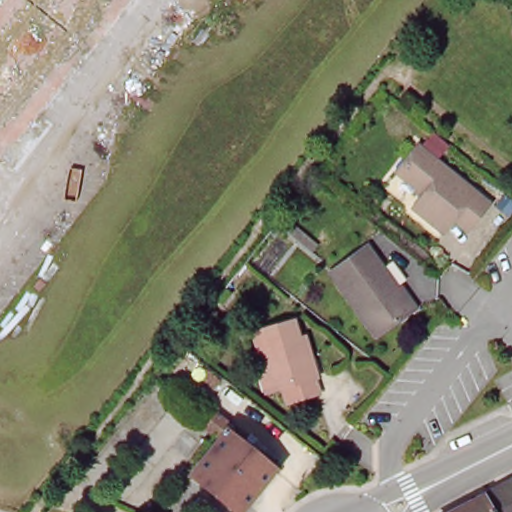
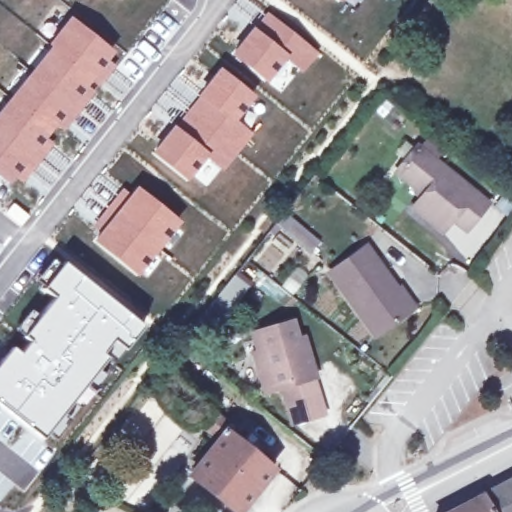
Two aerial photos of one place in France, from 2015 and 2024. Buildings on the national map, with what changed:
demolished [(31,122),(0,159),(0,0),(128,0),(31,122)]
new [(267,10),(321,54),(303,74),(284,59),(265,82),(230,54),(267,10)]
new [(70,16),(114,51),(107,59),(116,66),(62,134),(55,127),(47,137),(54,142),(21,186),(16,182),(11,187),(0,179),(0,107),(32,67),(70,16)]
new [(219,67),(254,94),(237,120),(254,133),(222,170),(206,157),(185,180),(151,152),(219,67)]
unchanged [(485,203),(463,230),(447,217),(439,229),(411,205),(421,193),(394,171),(412,145),(485,203)]
new [(122,187),(129,192),(135,185),(179,220),(135,275),(92,240),(97,232),(90,227),(122,187)]
new [(286,212),(321,241),(311,253),(276,224),(286,212)]
unchanged [(412,308),(375,335),(331,273),(367,247),(412,308)]
new [(18,350),(27,340),(20,333),(52,296),(42,287),(63,260),(144,326),(104,372),(101,370),(42,439),(9,414),(0,406),(0,358),(11,345),(18,350)]
new [(237,272),(252,285),(217,325),(202,312),(237,272)]
unchanged [(246,357),(252,355),(245,337),(284,323),(290,342),(298,338),(305,358),(311,378),(306,380),(311,395),(281,405),(276,391),(266,395),(260,397),(246,357)]
unchanged [(220,443),(263,478),(236,512),(213,512),(177,483),(209,447),(196,437),(207,422),(225,436),(220,443)]
unchanged [(481,512),(473,498),(512,477),(512,512),(481,512)]
unchanged [(481,512),(445,512),(473,498),(481,512)]

